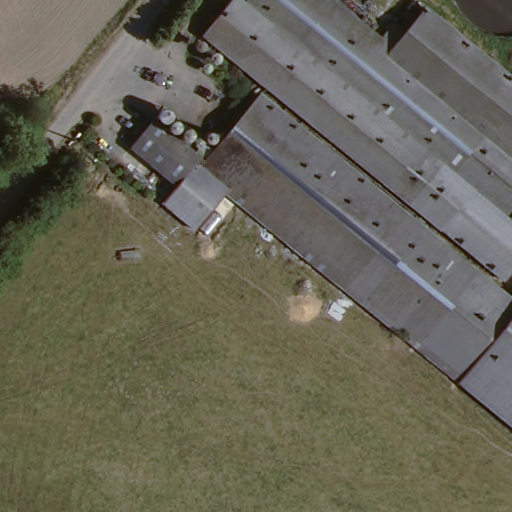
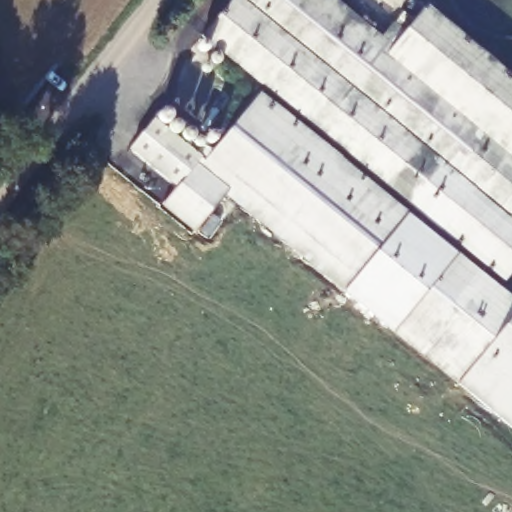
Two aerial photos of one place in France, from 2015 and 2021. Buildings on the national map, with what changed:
unchanged [(503,282),(410,207),(387,188),(202,37),(232,0),(233,0),(242,7),(248,0),(312,0),(320,6),(328,0),(378,41),(382,37),(391,25),(395,21),(406,30),(421,11),(512,85),(512,271),(503,282)]
unchanged [(456,383),(229,194),(199,231),(165,204),(179,186),(133,149),(156,120),(203,158),(255,92),(512,302),(512,427),(456,383)]

